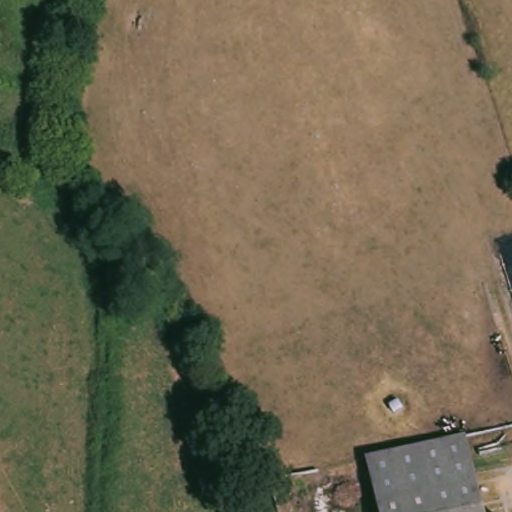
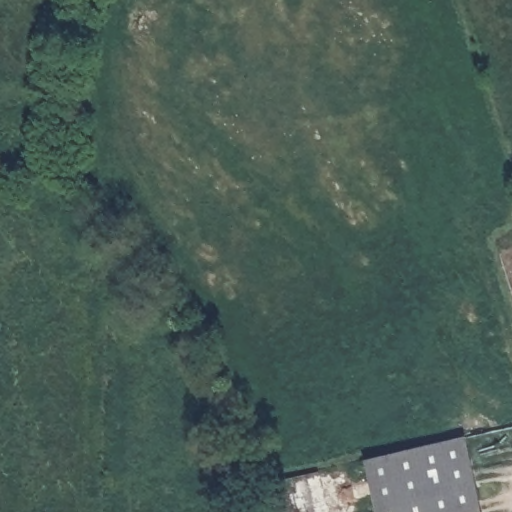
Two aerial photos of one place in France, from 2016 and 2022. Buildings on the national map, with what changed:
unchanged [(377,458),(464,438),(466,437),(483,512),(376,512),(364,461),(377,458)]

